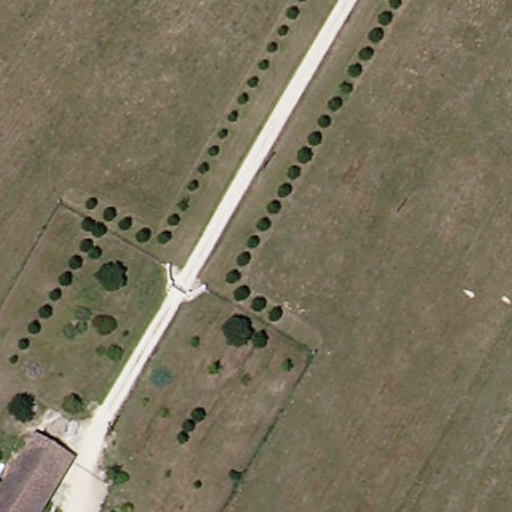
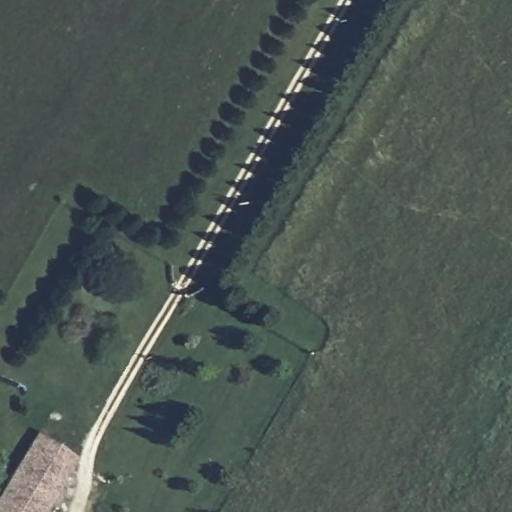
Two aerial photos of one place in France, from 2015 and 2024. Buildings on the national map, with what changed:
unchanged [(34,512),(0,512),(0,483),(25,441),(65,461),(34,512)]

